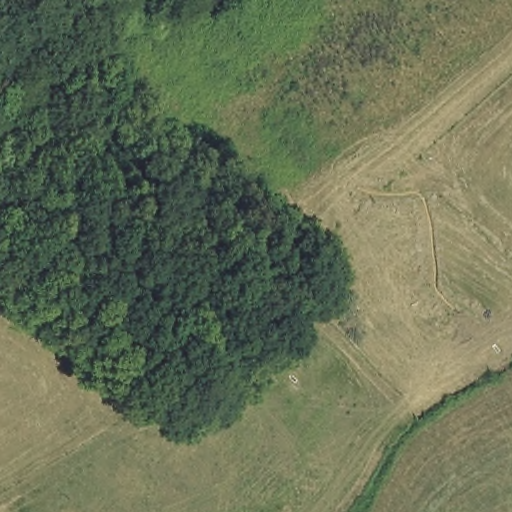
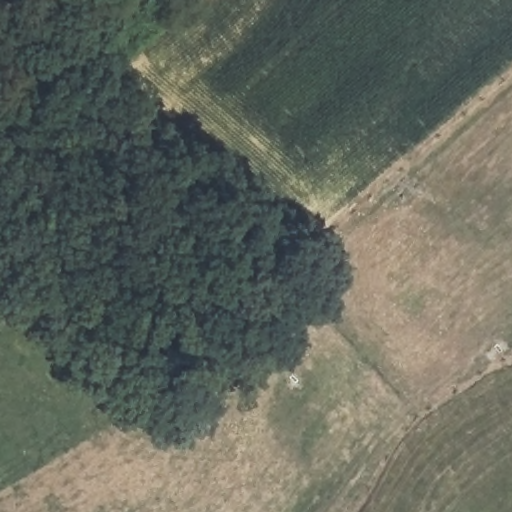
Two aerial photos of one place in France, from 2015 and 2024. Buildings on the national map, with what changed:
[]

